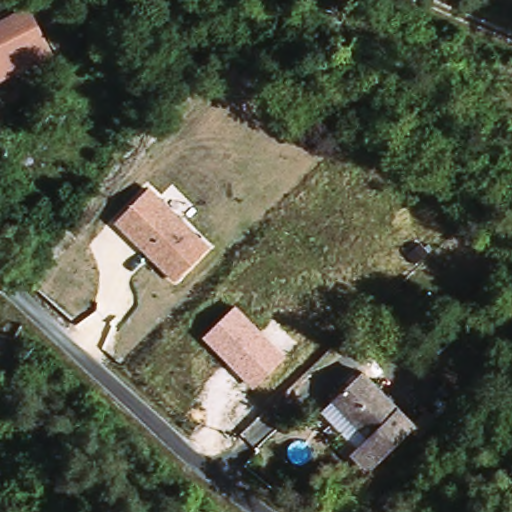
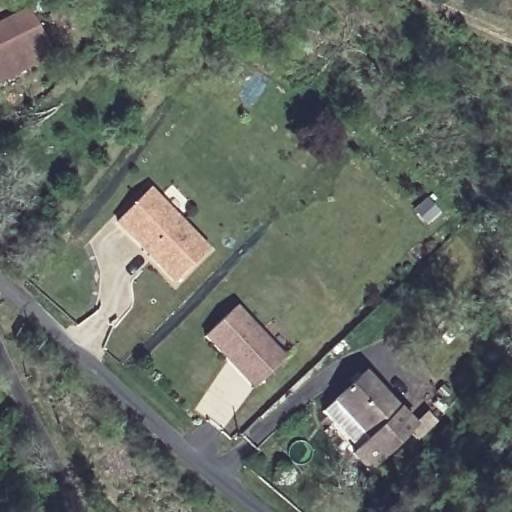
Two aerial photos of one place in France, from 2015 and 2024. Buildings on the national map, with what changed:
unchanged [(32,6),(55,55),(0,87),(0,23),(32,6)]
unchanged [(196,75),(180,60),(190,45),(208,62),(196,75)]
unchanged [(150,187),(210,246),(175,282),(115,223),(150,187)]
unchanged [(236,305),(285,353),(252,386),(204,338),(236,305)]
unchanged [(418,428),(373,473),(360,458),(375,441),(338,403),(366,374),(418,428)]

